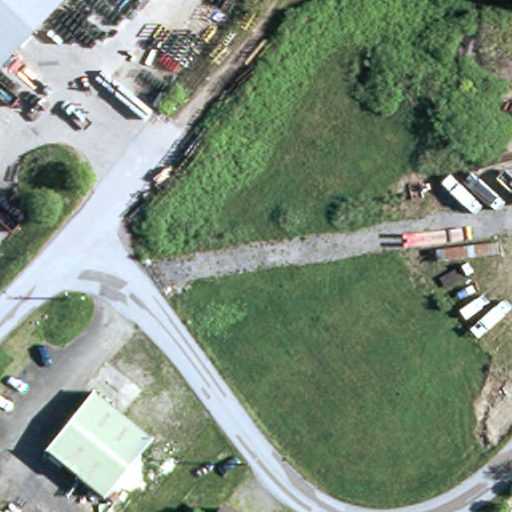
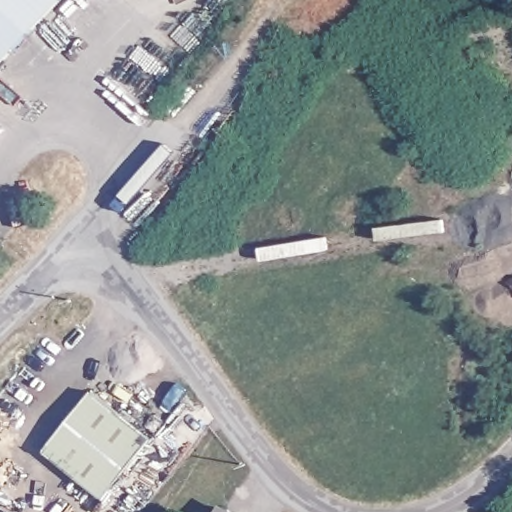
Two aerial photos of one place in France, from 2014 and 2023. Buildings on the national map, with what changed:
unchanged [(0,0),(67,0),(0,68),(0,0)]
unchanged [(151,438),(102,496),(45,446),(95,388),(151,438)]
unchanged [(224,512),(219,512),(220,510),(224,512)]

